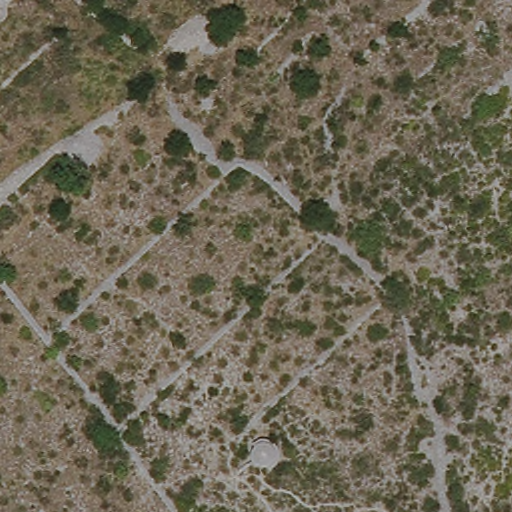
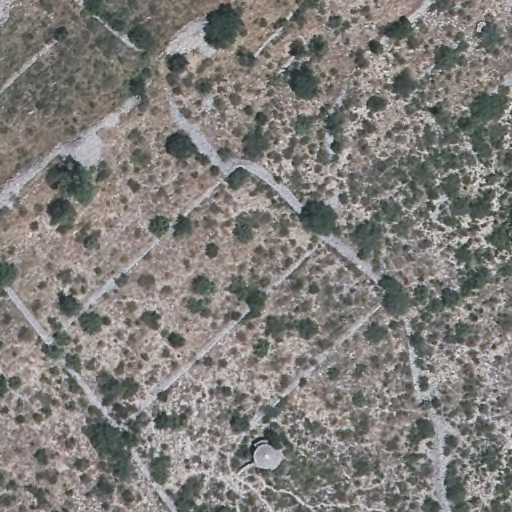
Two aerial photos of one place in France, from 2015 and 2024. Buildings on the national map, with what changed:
unchanged [(284,447),(271,470),(247,462),(258,436),(284,447)]

